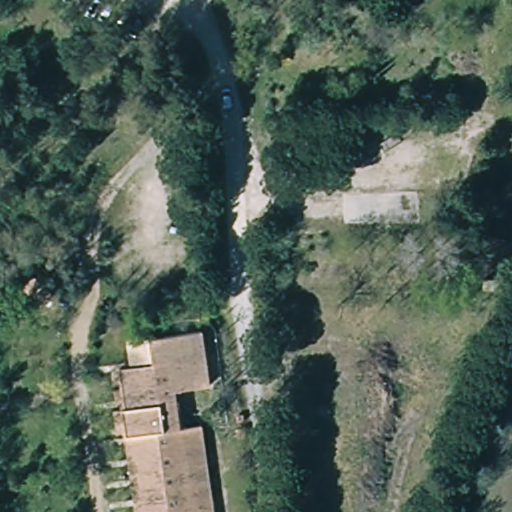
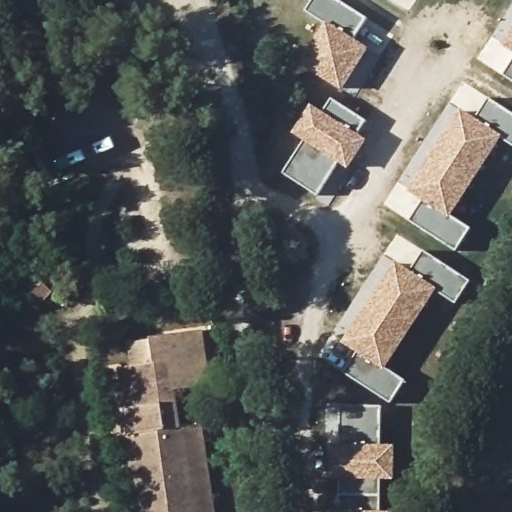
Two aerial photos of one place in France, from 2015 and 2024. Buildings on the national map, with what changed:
new [(365,19),(352,38),(367,48),(342,90),(299,64),(325,24),(305,12),(312,0),(335,0),(365,19)]
new [(512,31),(512,52),(502,46),(512,31)]
new [(503,75),(512,60),(512,81),(503,75)]
new [(303,141),(292,134),(311,105),(321,112),(331,100),(364,122),(354,134),(365,141),(347,169),(336,162),(316,196),(282,173),(303,141)]
new [(408,191),(461,109),(477,120),(489,100),(512,115),(512,145),(502,138),(452,218),(470,230),(456,251),(410,221),(422,201),(408,191)]
new [(357,353),(343,343),(396,262),(411,272),(424,252),(471,282),(457,306),(436,292),(386,370),(405,382),(391,403),(344,372),(357,353)]
unchanged [(131,368),(127,345),(149,342),(148,339),(200,331),(208,386),(173,392),(179,430),(200,426),(213,512),(137,512),(118,370),(131,368)]

